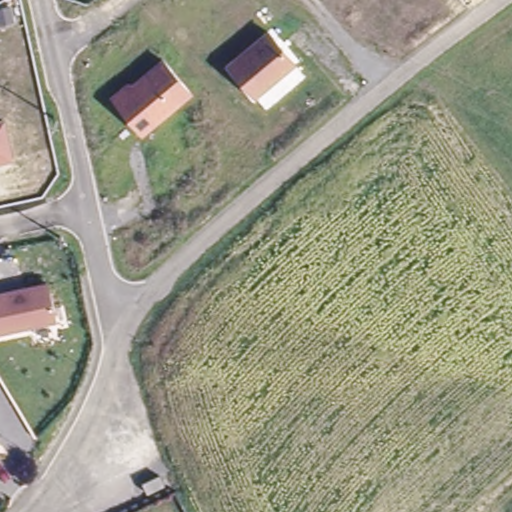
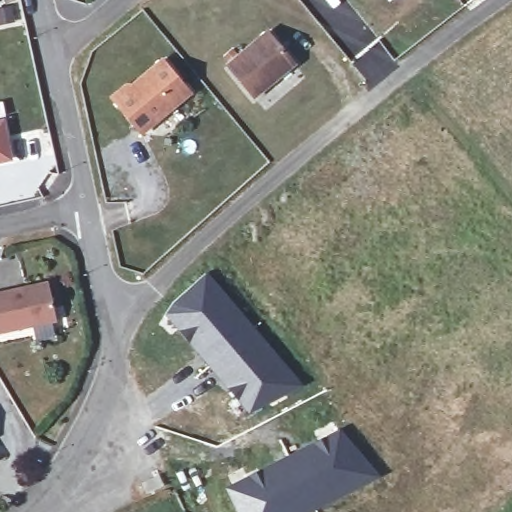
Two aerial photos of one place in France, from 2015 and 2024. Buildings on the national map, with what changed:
unchanged [(270,26),(298,64),(253,100),(227,64),(270,26)]
unchanged [(139,126),(112,94),(128,81),(133,81),(164,56),(191,90),(159,116),(142,130),(139,126)]
unchanged [(13,161),(0,163),(0,120),(7,119),(13,161)]
new [(303,385),(252,412),(164,311),(206,274),(303,385)]
unchanged [(55,320),(0,332),(0,291),(48,280),(55,320)]
new [(308,512),(239,512),(229,488),(275,466),(277,468),(305,453),(303,450),(341,433),(378,475),(308,512)]
unchanged [(170,485),(156,490),(152,481),(166,475),(170,485)]

